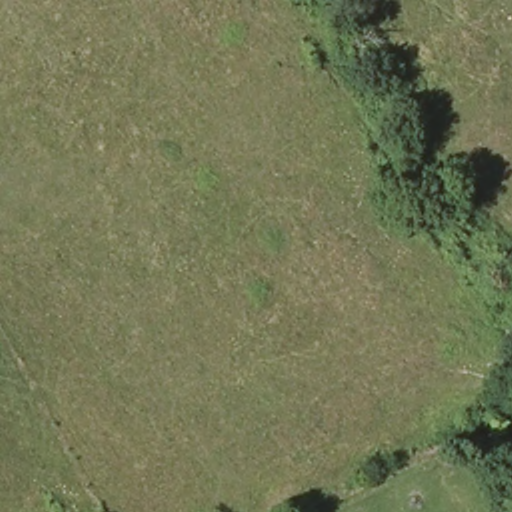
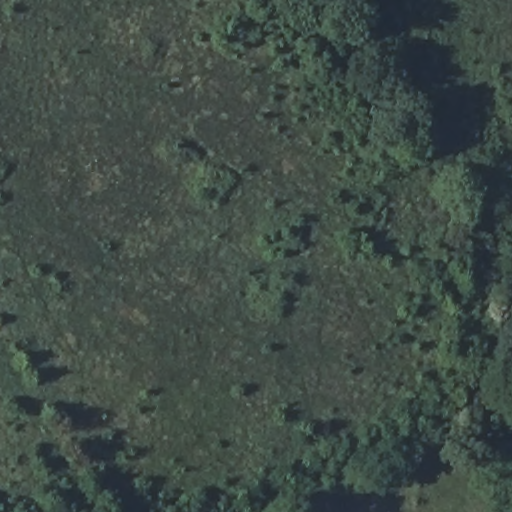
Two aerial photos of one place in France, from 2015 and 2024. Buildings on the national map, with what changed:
[]

